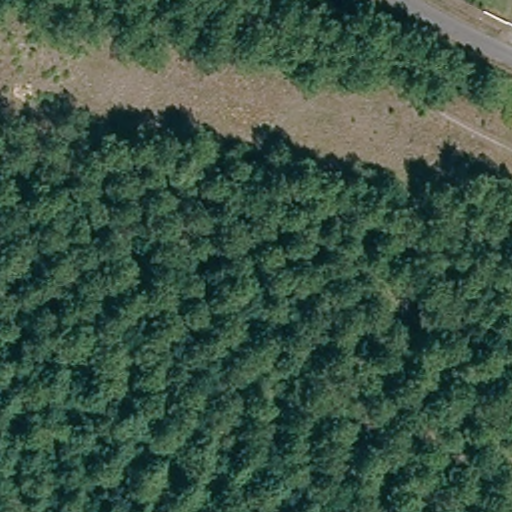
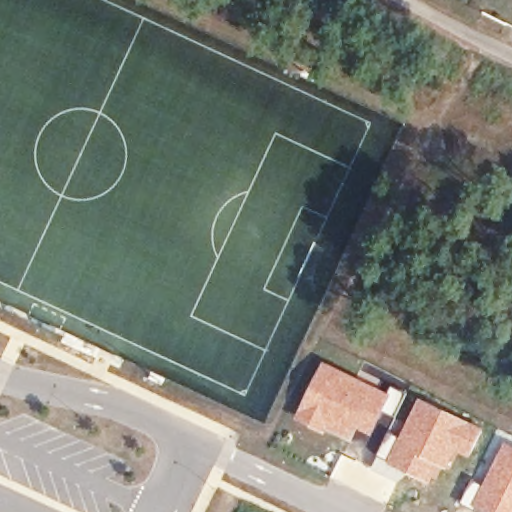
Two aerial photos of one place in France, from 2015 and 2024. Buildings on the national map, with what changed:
new [(323,360),(389,392),(392,386),(404,393),(393,416),(382,410),(369,435),(356,428),(348,442),(294,416),(323,360)]
new [(388,431),(397,436),(419,397),(482,428),(467,457),(457,451),(446,469),(443,467),(433,485),(400,471),(394,481),(369,468),(388,431)]
new [(481,484),(505,439),(512,443),(512,512),(483,512),(460,501),(473,479),(481,484)]

